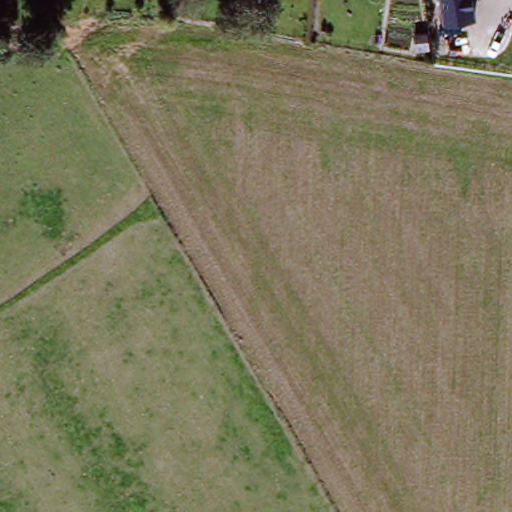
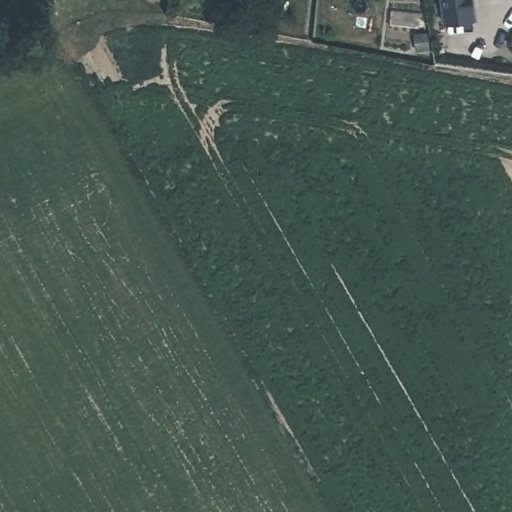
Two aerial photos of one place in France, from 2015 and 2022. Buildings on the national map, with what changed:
unchanged [(442,25),(439,0),(473,0),(476,22),(442,25)]

